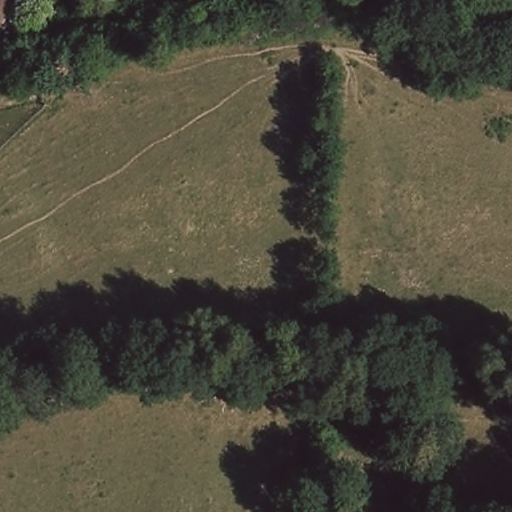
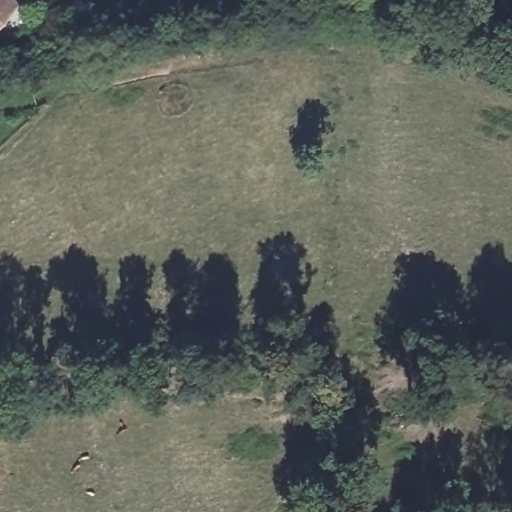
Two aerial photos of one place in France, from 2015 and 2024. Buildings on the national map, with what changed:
unchanged [(11,0),(0,14),(0,0),(11,0)]

